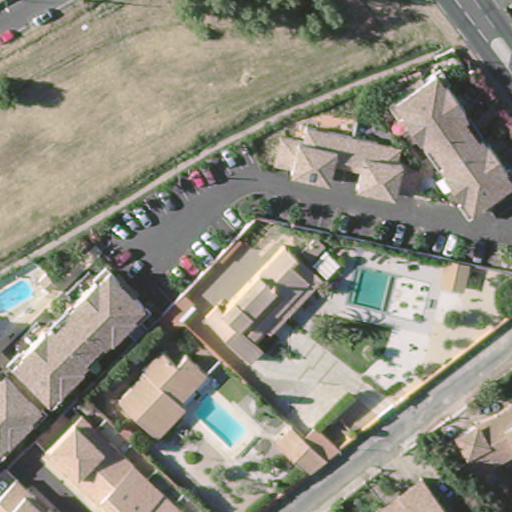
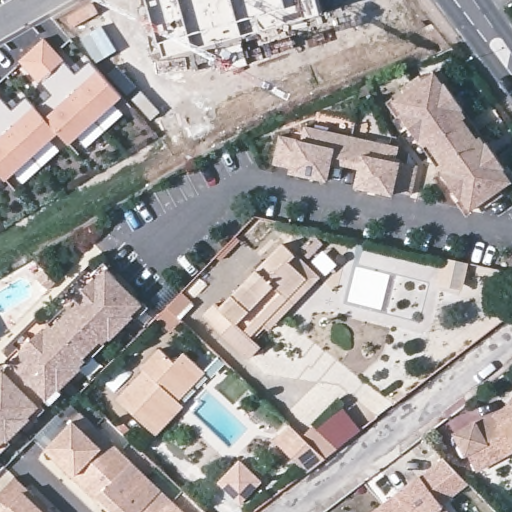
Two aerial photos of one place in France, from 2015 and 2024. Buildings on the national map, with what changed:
new [(165,56),(161,41),(150,0),(237,0),(246,33),(165,56)]
new [(294,22),(246,33),(237,0),(320,0),(323,12),(294,22)]
new [(44,36),(65,60),(40,83),(18,59),(44,36)]
new [(65,60),(75,72),(90,61),(123,97),(115,104),(77,137),(69,144),(60,134),(45,115),(52,108),(44,100),(50,95),(40,83),(65,60)]
unchanged [(471,135),(479,132),(509,180),(460,212),(431,171),(435,165),(422,151),(415,152),(387,104),(435,72),(471,135)]
new [(2,97),(0,98),(0,94),(2,97)]
new [(2,97),(12,108),(26,96),(45,115),(60,134),(52,140),(14,174),(5,181),(0,174),(0,98),(2,97)]
unchanged [(394,147),(387,196),(351,187),(352,172),(325,170),(320,186),(281,179),(283,172),(268,169),(275,142),(291,145),(300,130),(394,147)]
unchanged [(261,345),(248,358),(205,316),(216,303),(220,307),(284,244),(296,256),(318,278),(268,330),(262,324),(251,336),(261,345)]
unchanged [(464,263),(461,290),(435,286),(438,263),(464,263)]
unchanged [(140,306),(0,445),(0,370),(105,268),(140,306)]
unchanged [(192,307),(167,337),(152,322),(175,295),(192,307)]
unchanged [(150,429),(118,398),(145,370),(142,367),(160,348),(176,363),(185,353),(199,366),(205,372),(178,401),(183,406),(156,436),(150,429)]
unchanged [(484,426),(481,421),(482,421),(489,417),(501,412),(512,405),(512,413),(491,422),(484,426)]
unchanged [(463,435),(483,424),(484,426),(491,422),(512,413),(512,455),(482,471),(463,435)]
unchanged [(184,512),(107,512),(41,452),(77,414),(184,512)]
unchanged [(307,467),(275,436),(290,420),(304,432),(315,421),(338,444),(326,453),(325,454),(307,467)]
new [(445,460),(469,485),(442,505),(421,477),(445,460)]
unchanged [(391,497),(416,477),(442,512),(370,512),(391,497)]
unchanged [(15,480),(48,512),(0,512),(0,494),(15,480)]

